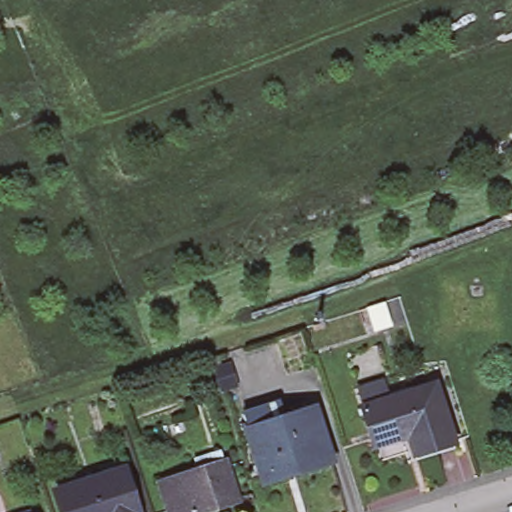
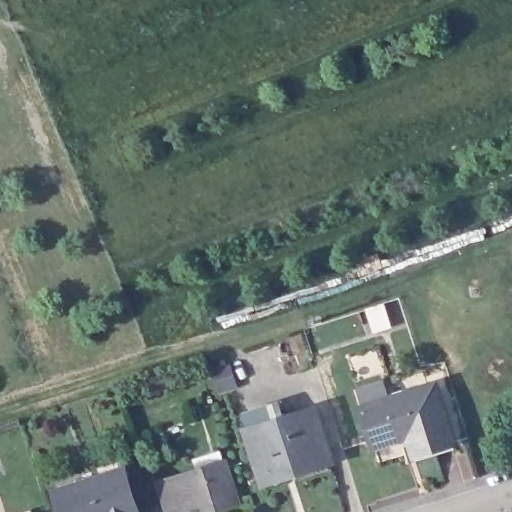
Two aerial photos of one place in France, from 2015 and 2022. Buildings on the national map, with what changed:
unchanged [(452,443),(414,455),(407,437),(375,447),(362,408),(357,392),(382,384),(387,401),(435,386),(452,443)]
unchanged [(314,411),(330,461),(262,482),(246,432),(314,411)]
unchanged [(175,479),(225,462),(237,502),(212,510),(212,508),(198,512),(166,512),(157,484),(175,479)]
unchanged [(135,512),(61,512),(55,492),(122,470),(135,512)]

